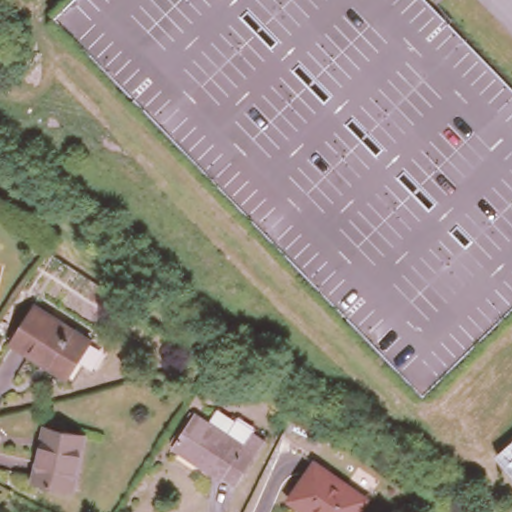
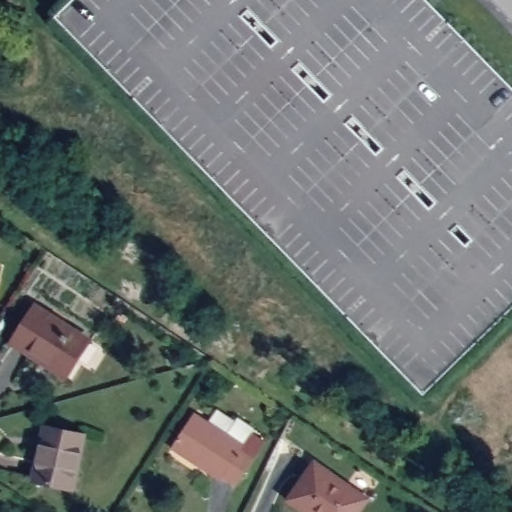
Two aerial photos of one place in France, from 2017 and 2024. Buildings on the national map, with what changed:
unchanged [(424,0),(512,91),(512,307),(418,394),(52,18),(71,0),(424,0)]
unchanged [(30,352),(10,339),(34,301),(88,335),(68,370),(65,374),(30,352)]
unchanged [(209,469),(172,444),(193,410),(207,419),(215,406),(231,417),(233,413),(235,414),(237,412),(240,415),(240,417),(252,425),(250,429),(262,438),(235,480),(223,471),(220,476),(209,469)]
unchanged [(45,477),(57,424),(90,430),(79,484),(45,477)]
unchanged [(496,454),(512,440),(512,472),(496,454)]
unchanged [(313,458),(366,495),(354,512),(312,512),(287,495),(313,458)]

